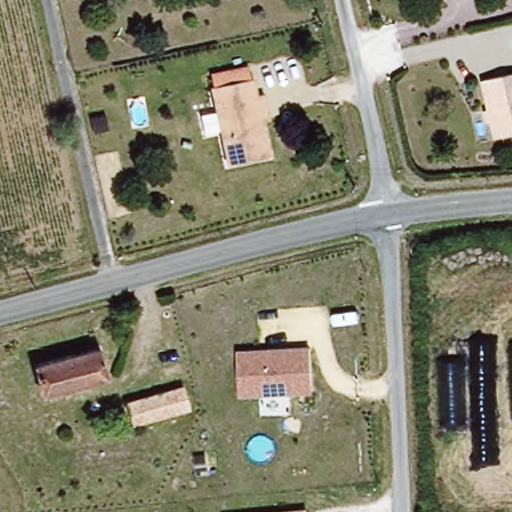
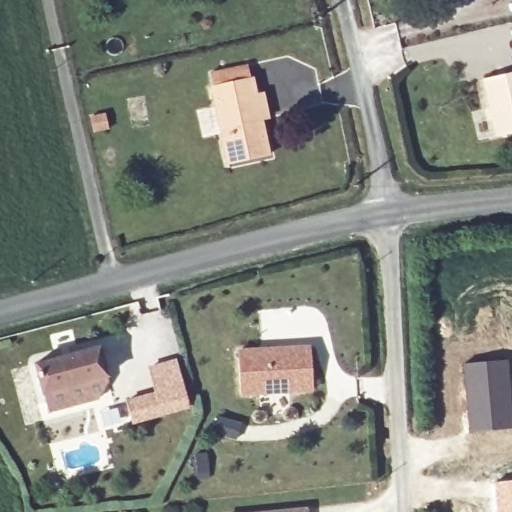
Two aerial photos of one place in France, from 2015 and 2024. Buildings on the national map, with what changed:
unchanged [(259,97),(267,95),(273,124),(266,126),(273,160),(228,170),(210,92),(213,91),(211,79),(250,71),(253,82),(255,81),(259,97)]
unchanged [(480,81),(512,73),(512,131),(493,135),(480,81)]
unchanged [(237,346),(310,341),(313,390),(241,396),(237,346)]
unchanged [(33,363),(95,346),(102,374),(41,390),(33,363)]
new [(512,404),(512,427),(468,432),(462,363),(508,358),(512,404)]
unchanged [(183,406),(132,420),(126,400),(177,386),(183,406)]
new [(512,512),(495,512),(493,481),(512,479),(512,512)]
unchanged [(307,512),(236,512),(306,504),(307,512)]

